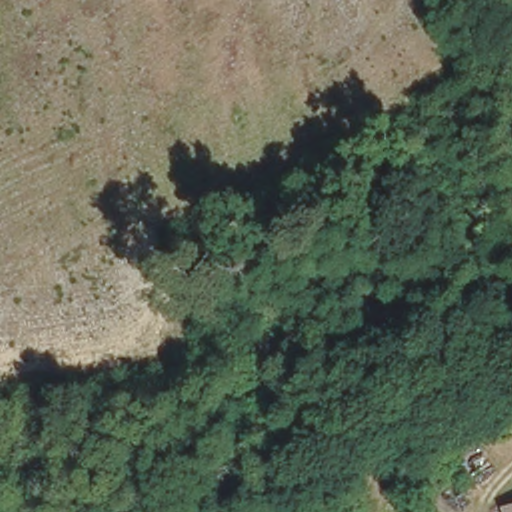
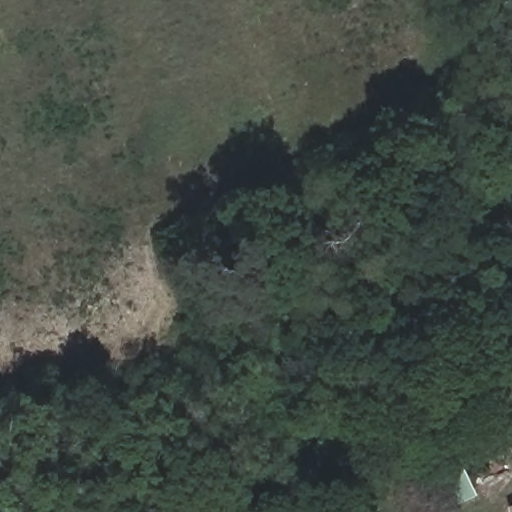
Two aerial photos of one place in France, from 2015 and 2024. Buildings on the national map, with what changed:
unchanged [(504,504),(512,502),(512,512),(506,512),(504,504)]

